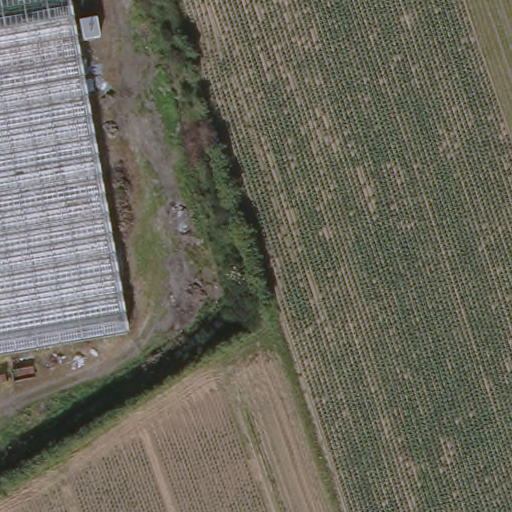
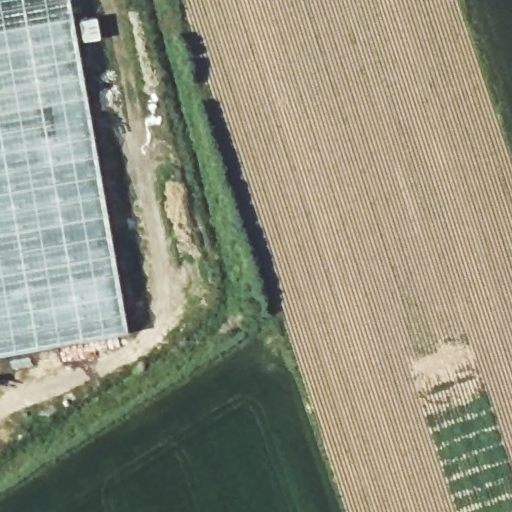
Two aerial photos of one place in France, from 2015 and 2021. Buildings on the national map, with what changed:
unchanged [(0,359),(0,0),(68,0),(127,338),(0,359)]

